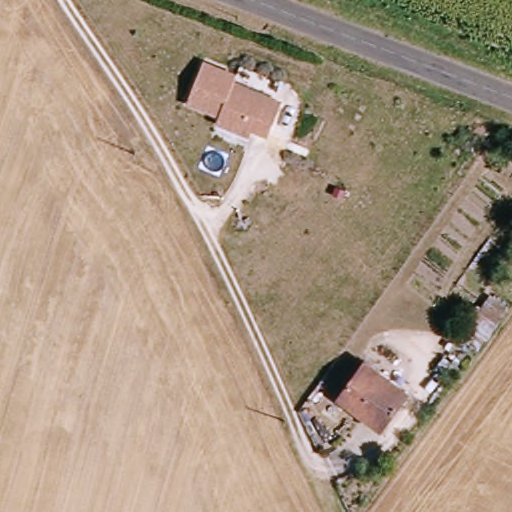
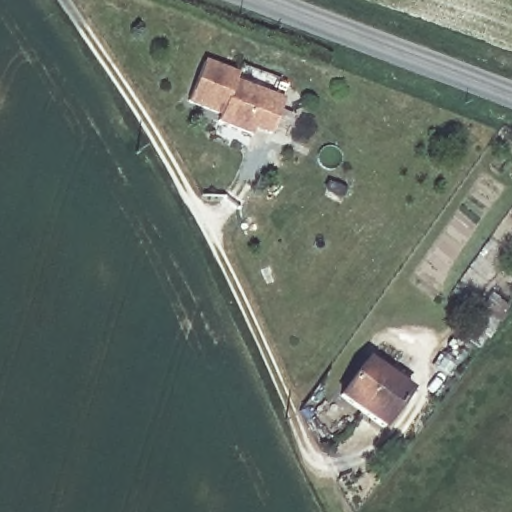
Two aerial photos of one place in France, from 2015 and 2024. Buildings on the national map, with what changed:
unchanged [(272,133),(256,128),(253,135),(219,123),(221,116),(189,104),(203,64),(237,76),(234,83),(283,100),(272,133)]
unchanged [(417,393),(391,430),(347,399),(374,362),(417,393)]

